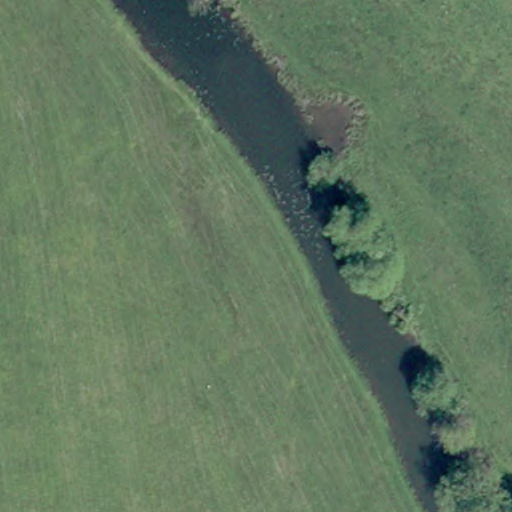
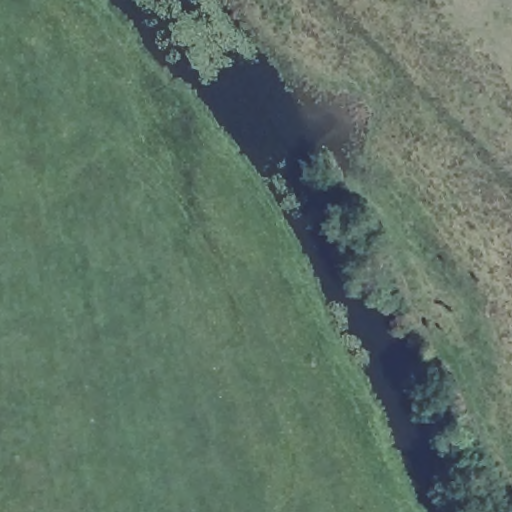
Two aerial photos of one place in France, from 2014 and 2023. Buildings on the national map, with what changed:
[]

